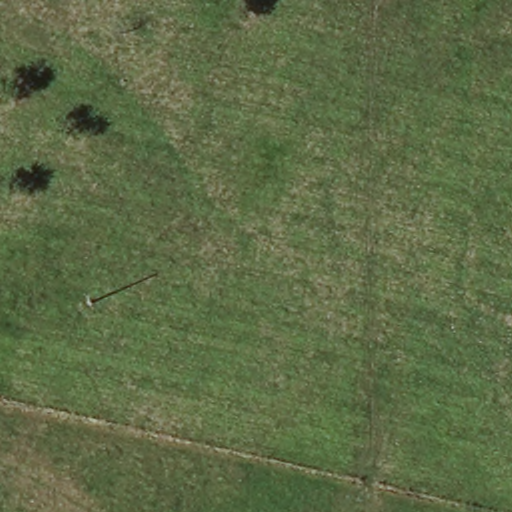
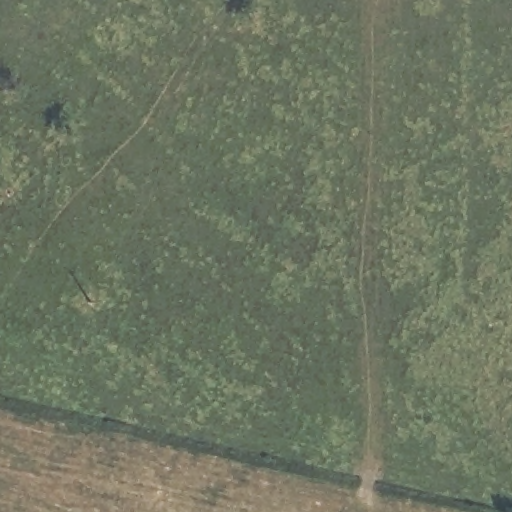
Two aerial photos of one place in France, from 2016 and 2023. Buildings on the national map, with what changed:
[]

